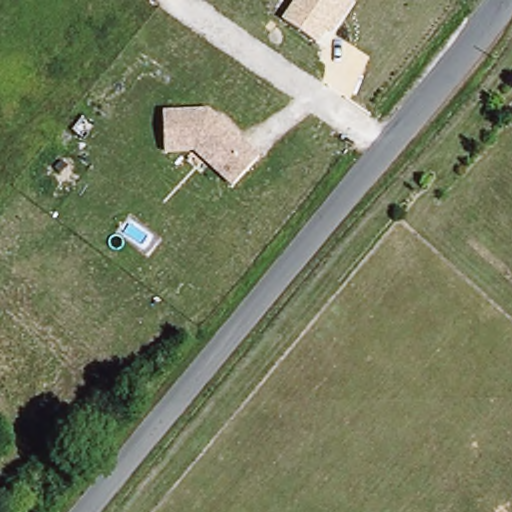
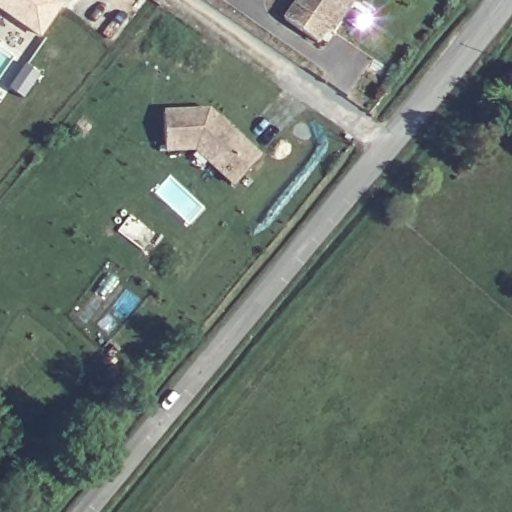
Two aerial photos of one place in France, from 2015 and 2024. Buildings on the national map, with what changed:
new [(63,4),(40,36),(0,9),(0,0),(57,0),(63,4)]
new [(221,0),(220,1),(217,0),(221,0)]
unchanged [(354,0),(355,1),(333,32),(328,30),(319,42),(282,19),(295,0),(354,0)]
unchanged [(161,110),(210,107),(263,154),(234,186),(193,153),(163,153),(161,110)]

